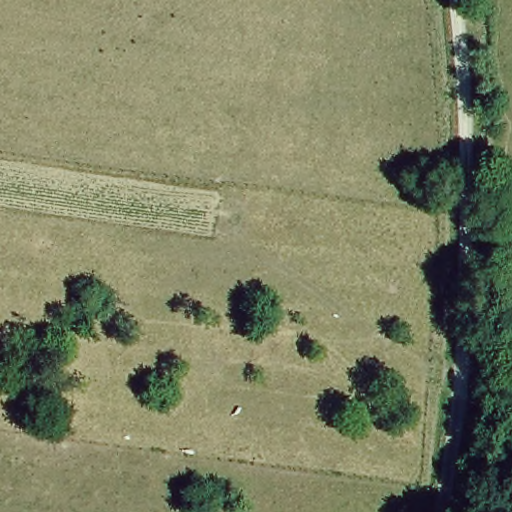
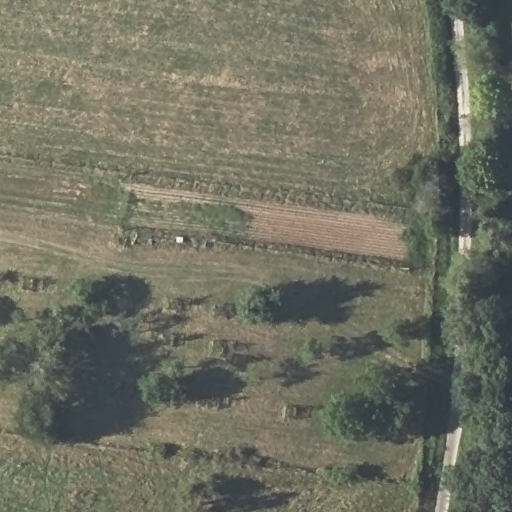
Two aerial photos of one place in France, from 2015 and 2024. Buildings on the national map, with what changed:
[]

